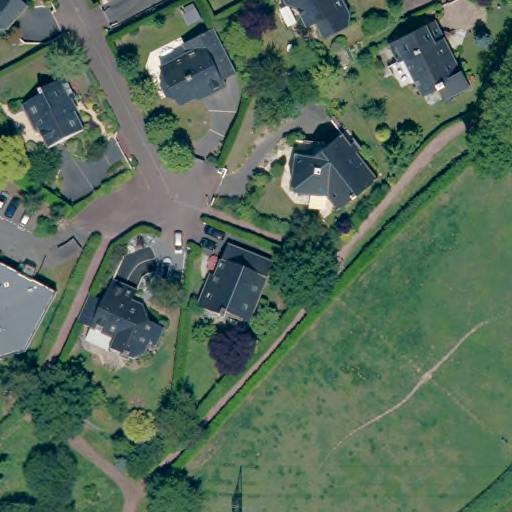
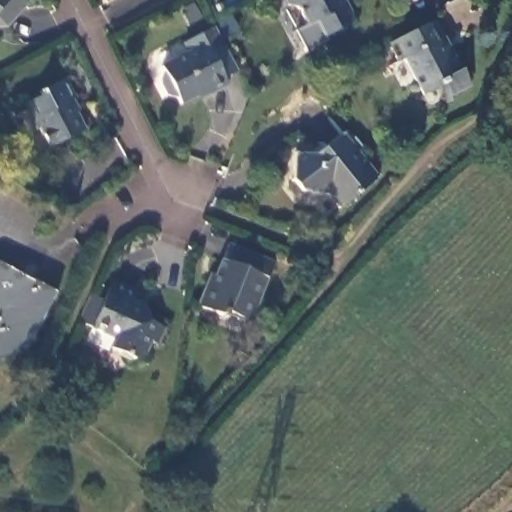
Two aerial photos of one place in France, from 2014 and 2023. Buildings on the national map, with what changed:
unchanged [(5,21),(0,17),(0,0),(22,0),(5,21)]
unchanged [(344,6),(341,21),(319,31),(310,15),(300,20),(292,4),(281,1),(281,0),(341,0),(344,6)]
unchanged [(416,82),(399,49),(393,52),(384,35),(429,12),(438,32),(436,34),(440,43),(443,41),(449,54),(454,52),(465,74),(446,86),(440,75),(436,78),(419,87),(416,82)]
unchanged [(219,74),(222,82),(206,90),(204,86),(177,101),(174,95),(164,93),(157,79),(159,68),(156,64),(184,49),(179,38),(210,22),(234,67),(219,74)]
unchanged [(62,76),(70,92),(74,98),(66,102),(80,129),(45,145),(23,104),(39,96),(35,90),(54,80),(62,76)]
unchanged [(334,205),(327,189),(294,186),(284,179),(288,152),(306,154),(339,137),(344,148),(364,139),(369,150),(364,153),(378,184),(334,205)]
unchanged [(240,313),(223,306),(220,312),(195,301),(204,277),(209,278),(226,239),(270,258),(253,299),(245,317),(240,313)]
unchanged [(21,352),(0,358),(0,264),(53,291),(21,352)]
unchanged [(90,294),(103,301),(114,279),(136,290),(131,304),(144,309),(148,320),(164,327),(156,344),(149,341),(144,355),(142,354),(134,358),(110,347),(114,338),(79,321),(90,294)]

